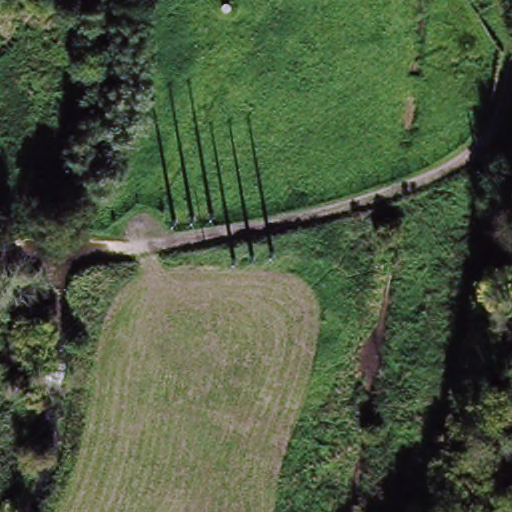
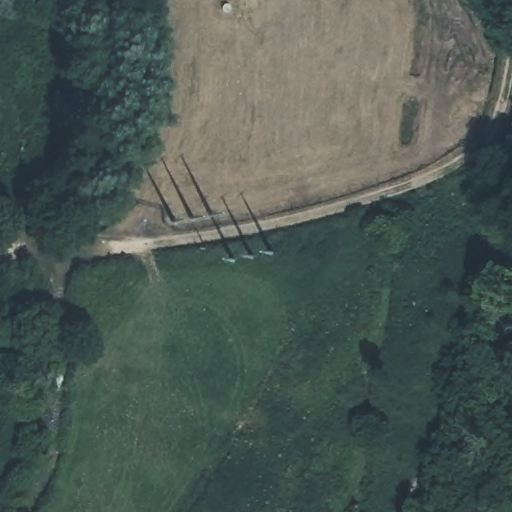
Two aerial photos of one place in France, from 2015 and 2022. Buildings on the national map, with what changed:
unchanged [(512,114),(512,126),(509,125),(512,114)]

